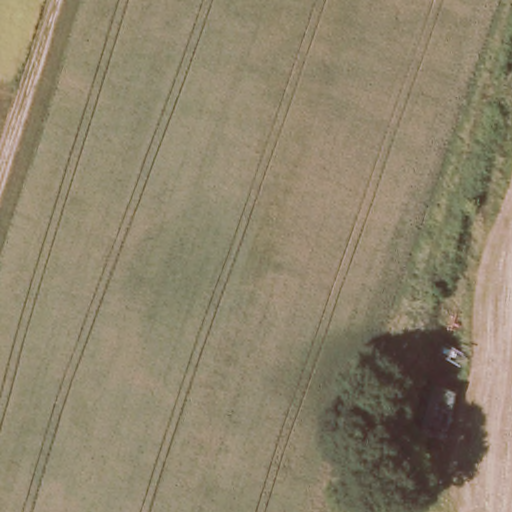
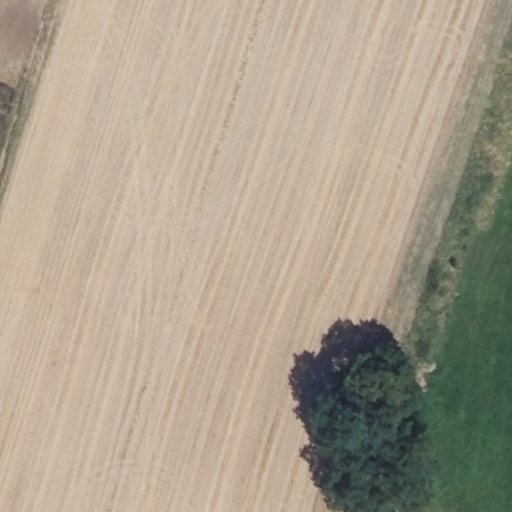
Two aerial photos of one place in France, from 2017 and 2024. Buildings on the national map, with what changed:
[]

